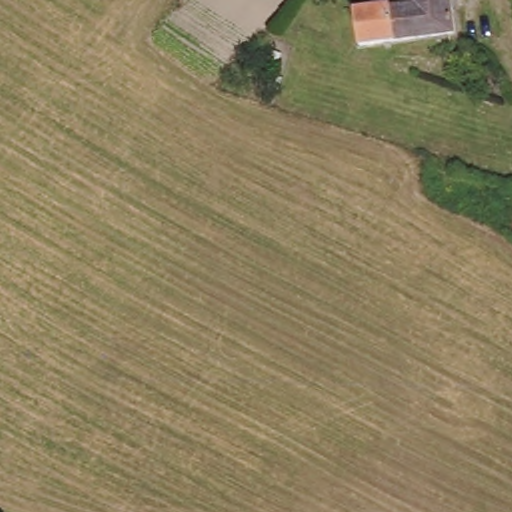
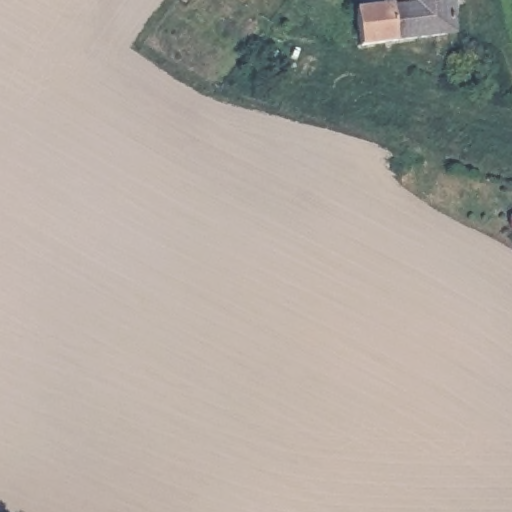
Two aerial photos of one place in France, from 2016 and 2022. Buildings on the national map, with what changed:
unchanged [(454,0),(457,37),(362,50),(357,0),(394,0),(395,7),(454,0)]
unchanged [(394,0),(454,0),(395,7),(394,0)]

